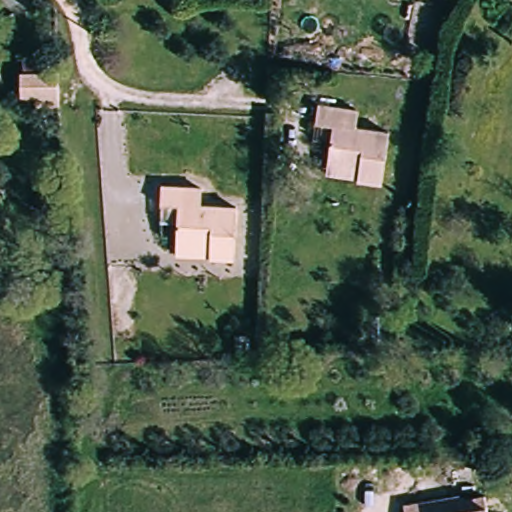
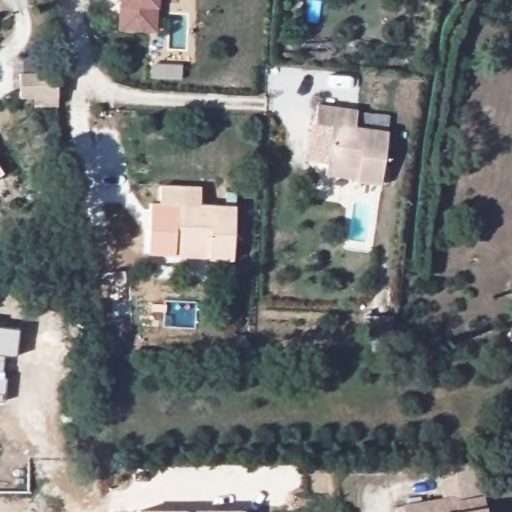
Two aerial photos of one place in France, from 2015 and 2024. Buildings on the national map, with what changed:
new [(156,31),(118,29),(118,3),(118,0),(158,0),(158,6),(156,31)]
new [(168,0),(178,0),(178,1),(168,0)]
unchanged [(46,57),(47,70),(55,70),(53,101),(15,99),(21,56),(46,57)]
unchanged [(347,129),(384,134),(379,186),(353,182),(353,169),(321,164),(325,126),(311,124),(313,104),(349,110),(347,129)]
unchanged [(194,208),(230,208),(233,258),(208,258),(208,245),(173,244),(172,209),(156,208),(155,187),(193,188),(194,208)]
new [(15,354),(4,353),(2,377),(6,377),(3,400),(0,400),(0,326),(18,328),(15,354)]
unchanged [(411,509),(464,505),(464,500),(491,498),(492,512),(411,512),(411,509)]
new [(138,508),(243,508),(243,512),(138,512),(138,508)]

